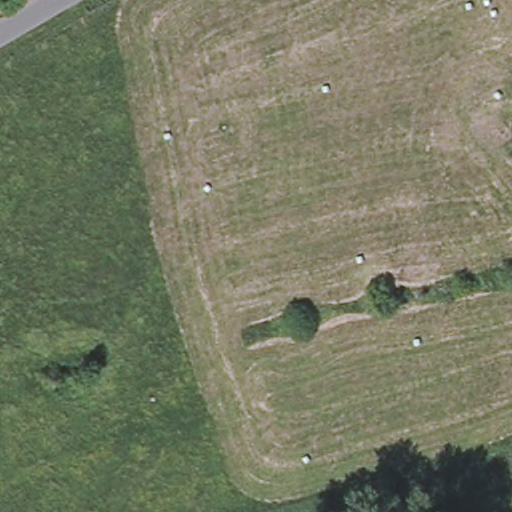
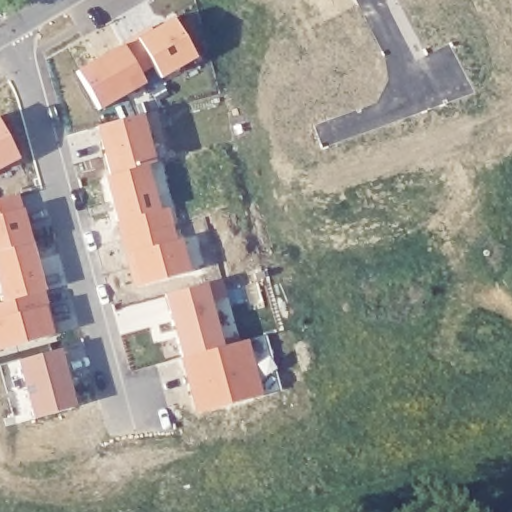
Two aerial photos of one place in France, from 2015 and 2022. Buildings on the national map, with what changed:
new [(143,81),(98,107),(76,70),(122,44),(143,81)]
new [(144,115),(156,161),(147,164),(160,212),(169,210),(176,242),(182,240),(190,271),(135,286),(108,177),(113,175),(100,126),(144,115)]
new [(0,164),(0,127),(15,156),(0,164)]
new [(22,210),(24,210),(46,290),(43,291),(54,335),(0,348),(0,304),(5,303),(0,283),(0,200),(19,195),(22,210)]
new [(220,278),(225,296),(208,301),(220,345),(182,355),(164,293),(220,278)]
new [(220,345),(246,338),(261,394),(197,411),(182,355),(220,345)]
new [(63,350),(76,403),(37,416),(21,361),(63,350)]

